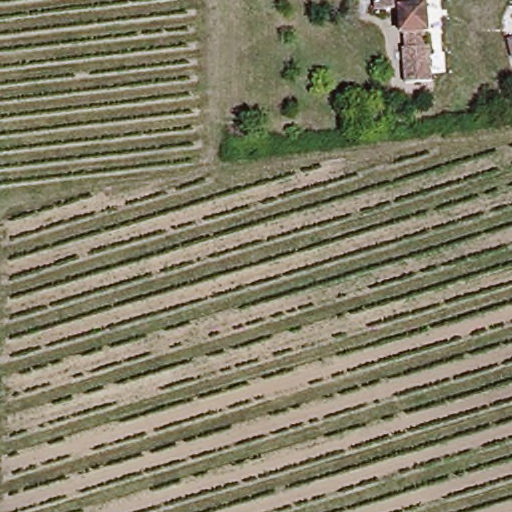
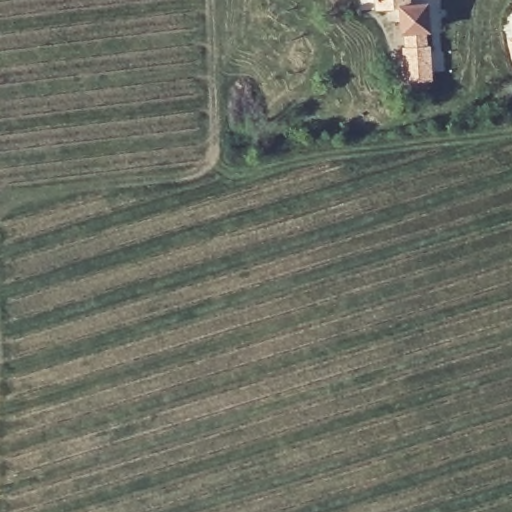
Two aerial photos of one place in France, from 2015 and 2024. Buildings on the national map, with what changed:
unchanged [(399,11),(416,12),(417,39),(413,39),(413,53),(418,53),(418,88),(392,89),(391,54),(393,54),(392,40),(388,40),(388,15),(366,15),(366,0),(399,0),(399,11)]

